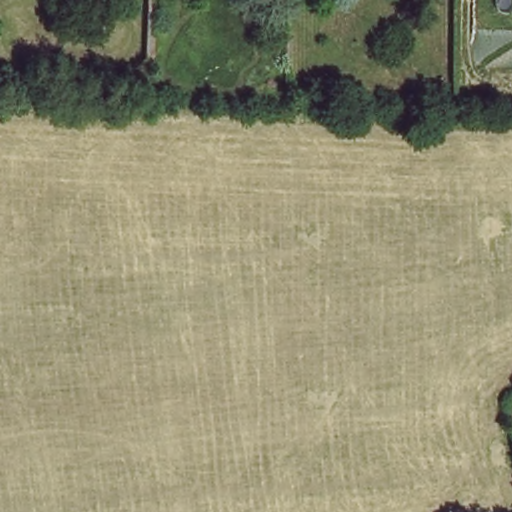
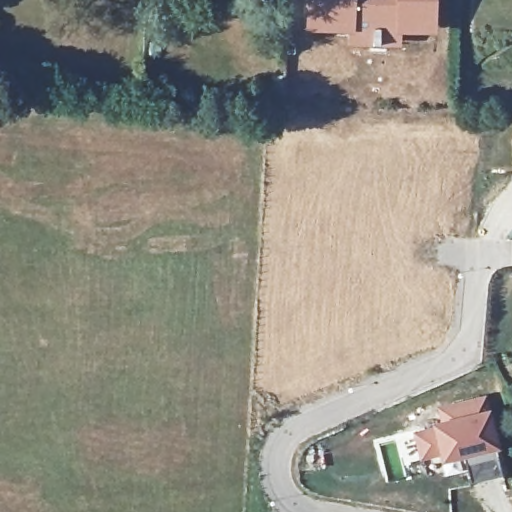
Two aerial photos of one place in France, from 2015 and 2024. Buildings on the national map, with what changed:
new [(302,0),(354,0),(354,28),(346,29),(301,27),(302,0)]
new [(354,28),(354,0),(435,0),(434,30),(399,30),(399,41),(348,45),(346,29),(354,28)]
new [(487,415),(494,453),(439,464),(437,456),(419,459),(414,430),(487,415)]

